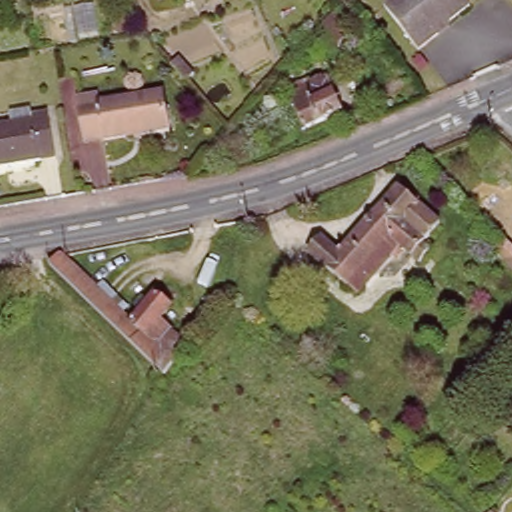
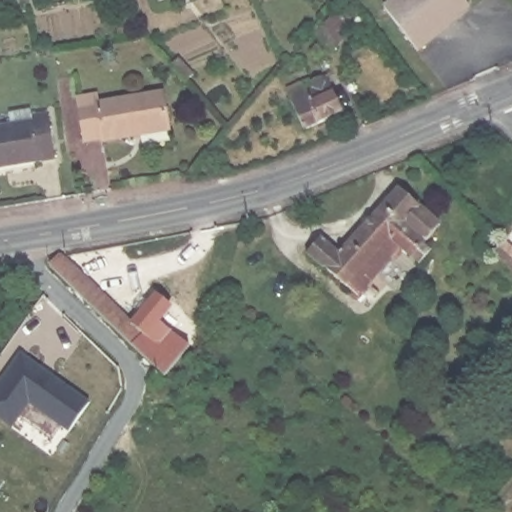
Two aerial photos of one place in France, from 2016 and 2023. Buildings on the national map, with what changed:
unchanged [(27,0),(35,0),(27,2),(27,0)]
unchanged [(442,36),(422,52),(388,10),(399,0),(467,0),(473,7),(450,24),(453,28),(442,36)]
unchanged [(329,35),(341,20),(344,22),(351,14),(358,20),(361,17),(366,20),(351,36),(356,41),(347,51),(329,35)]
unchanged [(181,69),(189,62),(203,77),(195,85),(181,69)]
unchanged [(306,130),(290,96),(329,78),(344,111),(306,130)]
unchanged [(80,100),(98,97),(99,105),(163,95),(171,132),(106,142),(101,140),(86,141),(80,100)]
unchanged [(0,132),(12,130),(9,118),(33,114),(34,121),(51,118),(59,161),(0,171),(0,132)]
unchanged [(419,261),(402,246),(389,260),(388,259),(358,291),(349,284),(346,286),(307,252),(320,238),(338,252),(398,188),(419,206),(439,223),(424,241),(432,248),(419,261)]
unchanged [(508,250),(512,245),(512,254),(508,250)]
unchanged [(149,335),(138,346),(55,268),(64,258),(136,324),(149,335)]
unchanged [(192,348),(191,349),(170,375),(168,373),(138,346),(149,335),(136,324),(161,298),(174,310),(163,322),(191,348),(192,348)]
new [(39,365),(37,369),(50,378),(53,374),(93,401),(73,429),(33,403),(16,427),(0,416),(0,390),(25,355),(39,365)]

